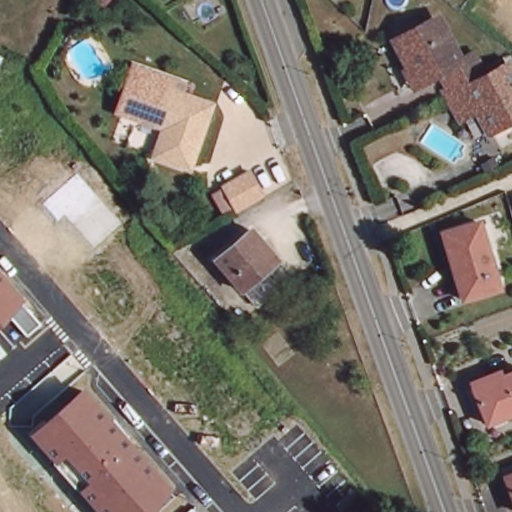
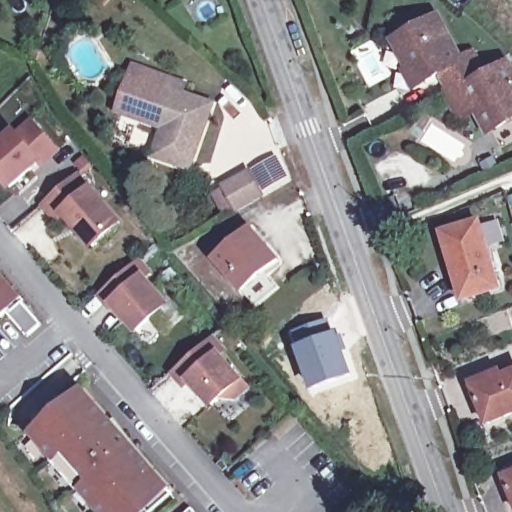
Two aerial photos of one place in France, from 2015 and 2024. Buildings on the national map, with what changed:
unchanged [(480,56),(492,79),(512,68),(512,126),(494,136),(482,115),(468,122),(454,96),(458,93),(448,75),(425,87),(415,68),(412,70),(398,44),(445,19),(467,62),(480,56)]
unchanged [(188,172),(155,158),(165,131),(137,120),(118,112),(136,67),(145,71),(175,82),(188,88),(185,97),(212,108),(188,172)]
new [(15,127),(17,130),(32,117),(57,146),(42,159),(39,156),(10,181),(0,170),(0,140),(15,127)]
unchanged [(77,167),(120,217),(93,241),(64,207),(56,213),(43,197),(77,167)]
unchanged [(227,212),(215,192),(226,186),(225,184),(251,169),(262,191),(227,212)]
unchanged [(498,289),(464,300),(445,236),(479,225),(498,289)]
unchanged [(273,262),(239,292),(214,262),(248,232),(273,262)]
new [(138,255),(149,268),(143,273),(167,300),(136,326),(113,299),(110,302),(98,290),(138,255)]
unchanged [(25,301),(41,323),(27,337),(10,315),(0,324),(0,271),(25,301)]
new [(327,318),(332,331),(337,329),(354,375),(311,391),(290,332),(327,318)]
new [(212,334),(224,347),(219,352),(247,385),(233,396),(219,395),(212,401),(190,377),(184,382),(172,367),(212,334)]
unchanged [(474,386),(470,378),(500,366),(503,373),(512,370),(512,410),(488,420),(474,386)]
unchanged [(172,490),(170,492),(175,496),(156,512),(98,512),(30,433),(84,390),(172,490)]
unchanged [(512,512),(501,483),(512,479),(512,512)]
unchanged [(192,510),(195,512),(189,512),(192,510)]

